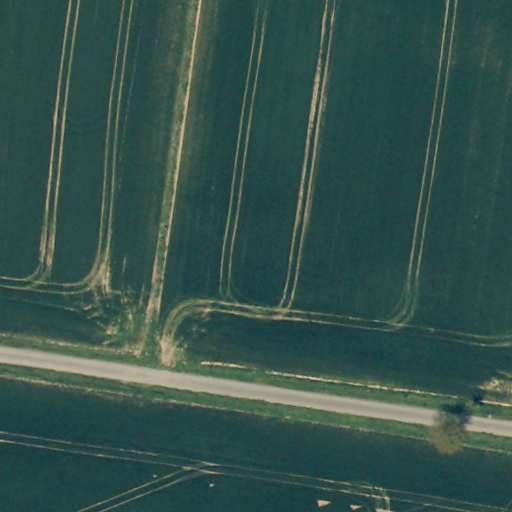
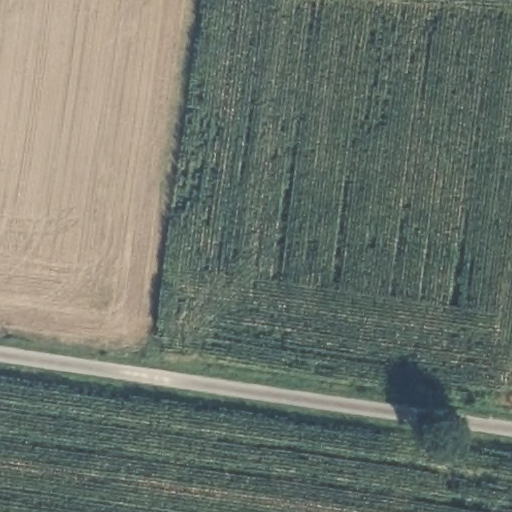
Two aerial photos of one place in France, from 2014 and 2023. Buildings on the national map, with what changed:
[]

